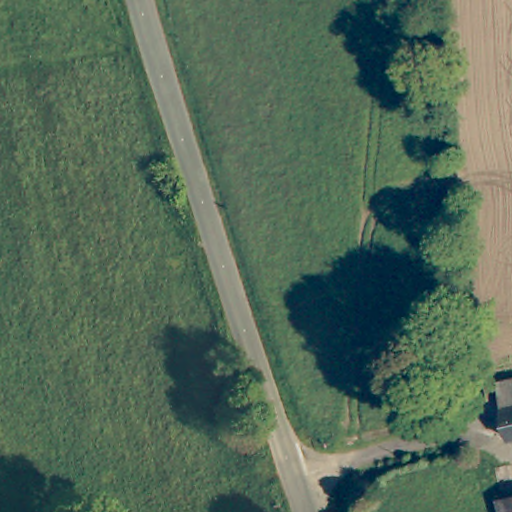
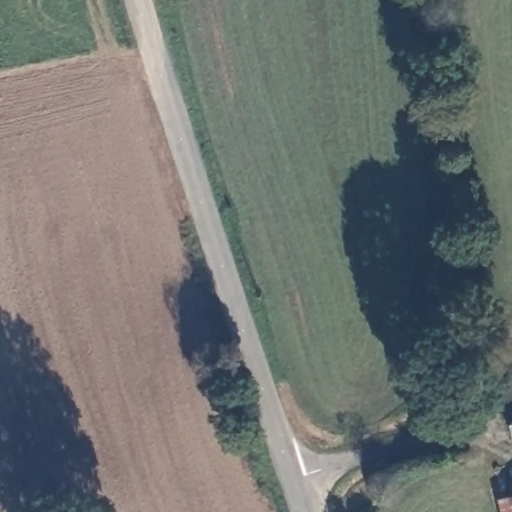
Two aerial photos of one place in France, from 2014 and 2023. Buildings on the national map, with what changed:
unchanged [(509,440),(500,408),(505,407),(500,382),(512,379),(512,439),(509,440)]
unchanged [(503,492),(512,490),(512,512),(508,512),(503,492)]

